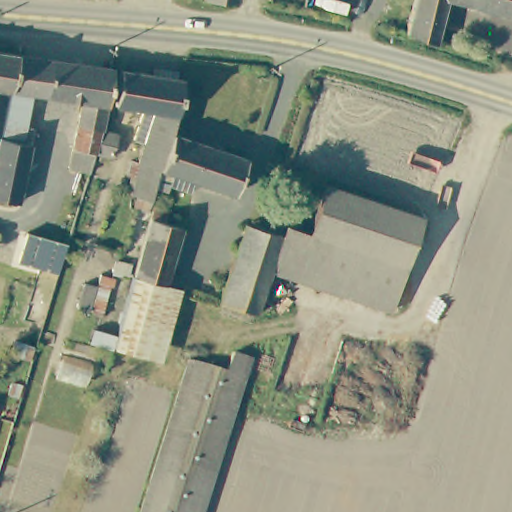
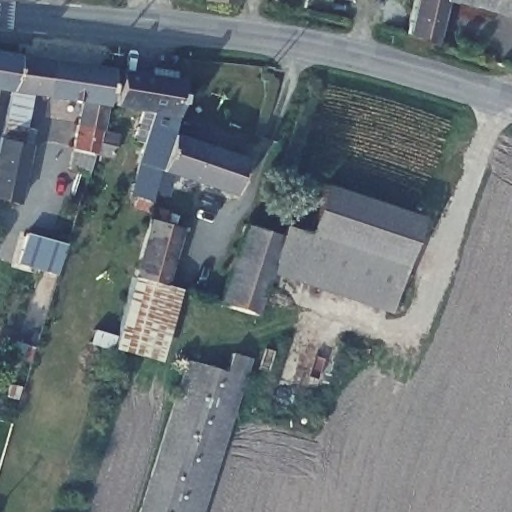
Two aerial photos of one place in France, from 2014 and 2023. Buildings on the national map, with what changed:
unchanged [(241,5),(205,1),(205,0),(242,0),(241,5)]
unchanged [(512,19),(457,2),(442,49),(412,40),(423,0),(512,0),(512,19)]
unchanged [(14,54),(16,54),(0,134),(0,52),(14,54)]
unchanged [(115,165),(95,159),(92,159),(86,176),(65,171),(80,107),(26,98),(18,144),(32,147),(16,207),(0,202),(0,134),(16,54),(115,70),(103,124),(100,136),(120,142),(115,165)]
unchanged [(184,81),(174,138),(167,162),(163,175),(151,216),(137,212),(139,203),(130,200),(156,117),(114,111),(122,69),(156,75),(157,64),(183,68),(181,80),(184,81)]
unchanged [(250,166),(237,202),(163,175),(167,162),(174,138),(250,166)]
unchanged [(302,284),(316,233),(329,184),(425,214),(395,311),(302,284)]
unchanged [(137,282),(156,218),(157,213),(187,222),(166,291),(137,282)]
unchanged [(275,275),(263,313),(260,312),(227,303),(251,223),(260,226),(286,234),(275,275)]
unchanged [(31,245),(37,225),(72,239),(67,258),(31,245)]
unchanged [(275,275),(286,234),(288,226),(310,232),(316,233),(302,284),(295,281),(275,275)]
unchanged [(119,356),(129,314),(137,282),(166,291),(174,293),(179,295),(161,367),(152,364),(119,356)]
unchanged [(252,379),(247,395),(210,512),(142,512),(195,359),(252,379)]

